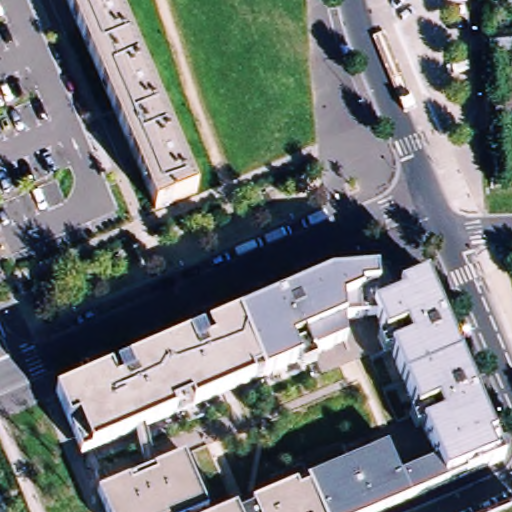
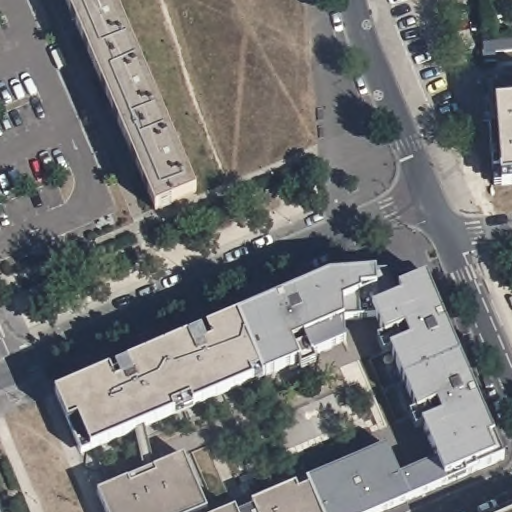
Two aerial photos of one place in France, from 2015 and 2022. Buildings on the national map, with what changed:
unchanged [(113,0),(196,195),(156,212),(66,0),(113,0)]
unchanged [(512,34),(512,51),(497,53),(497,62),(484,64),(482,51),(481,37),(512,34)]
new [(485,79),(512,76),(512,83),(486,86),(485,79)]
new [(493,174),(486,86),(512,83),(512,187),(502,188),(495,189),(493,174)]
unchanged [(322,280),(328,278),(356,276),(374,274),(422,271),(425,278),(426,278),(435,298),(461,359),(486,417),(487,420),(494,436),(503,459),(504,460),(470,474),(380,512),(320,512),(306,480),(386,446),(399,477),(436,461),(427,442),(377,324),(375,319),(347,322),(344,343),(262,378),(237,317),(322,280)]
unchanged [(60,407),(55,395),(67,389),(182,340),(237,317),(262,378),(145,428),(136,432),(93,450),(81,455),(60,407)]
unchanged [(109,488),(111,487),(126,481),(136,476),(181,457),(205,512),(203,512),(105,512),(101,502),(97,493),(109,488)]
unchanged [(234,511),(251,504),(306,480),(320,512),(231,512),(234,511)]
unchanged [(0,506),(2,512),(0,512),(0,506)]

